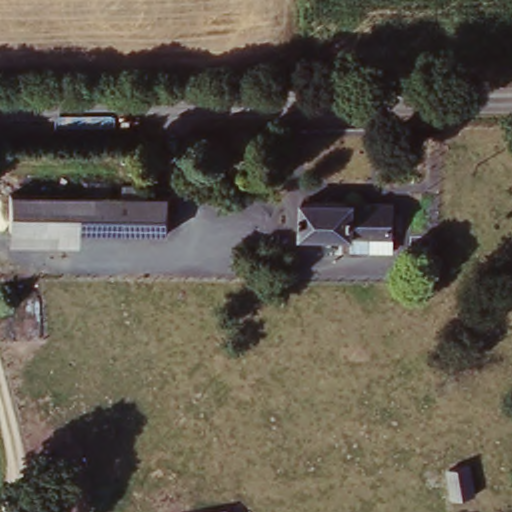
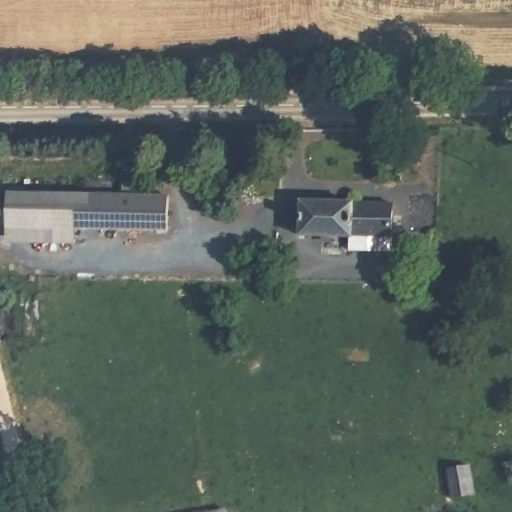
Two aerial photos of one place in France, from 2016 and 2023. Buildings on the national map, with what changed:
unchanged [(177,194),(175,234),(12,229),(14,188),(177,194)]
unchanged [(348,200),(364,204),(361,249),(345,248),(345,238),(294,235),(295,199),(348,200)]
unchanged [(397,205),(392,250),(361,249),(364,204),(397,205)]
unchanged [(470,465),(477,492),(457,497),(450,468),(470,465)]
unchanged [(230,510),(230,512),(215,512),(230,510)]

